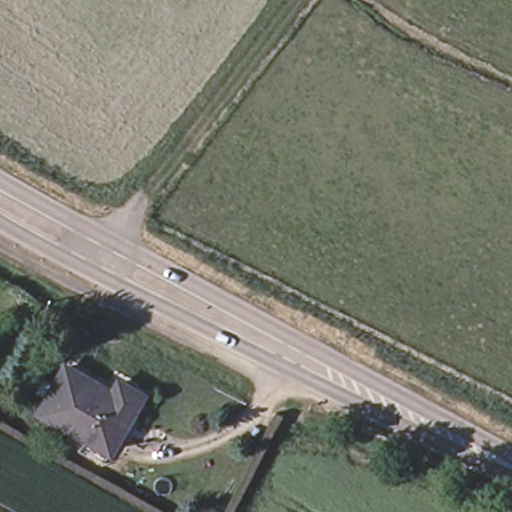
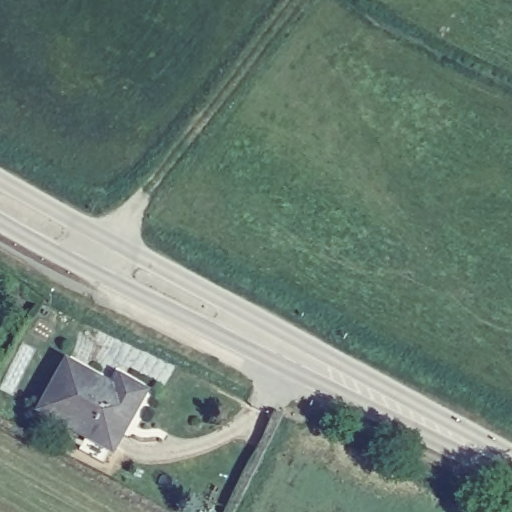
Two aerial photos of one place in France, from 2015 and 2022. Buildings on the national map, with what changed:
unchanged [(109,391),(116,380),(139,395),(106,451),(37,411),(64,365),(109,391)]

